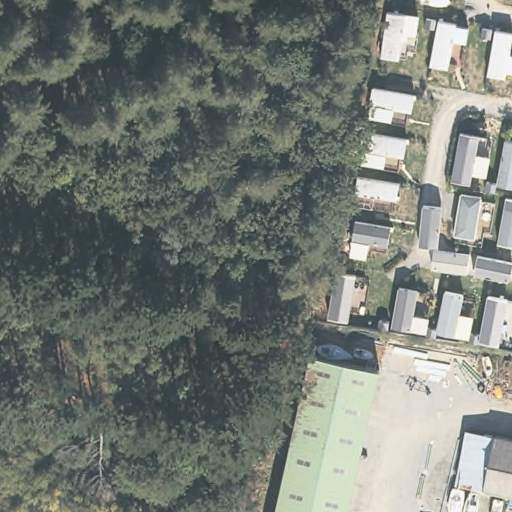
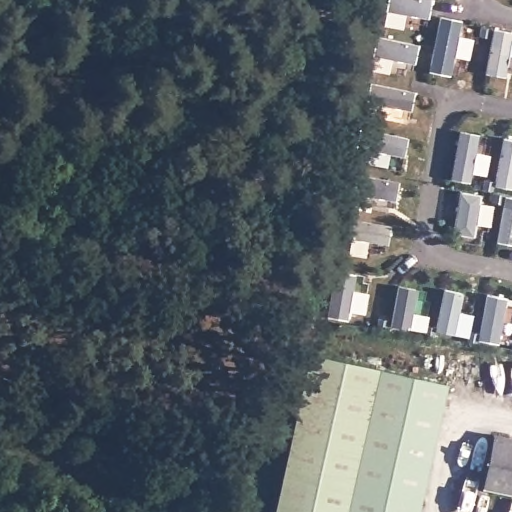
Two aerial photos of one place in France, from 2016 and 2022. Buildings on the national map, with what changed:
unchanged [(312,353),(382,368),(363,457),(431,472),(422,512),(277,512),(312,353)]
new [(363,457),(382,368),(450,385),(431,472),(363,457)]
unchanged [(512,491),(485,486),(496,434),(512,437),(512,491)]

